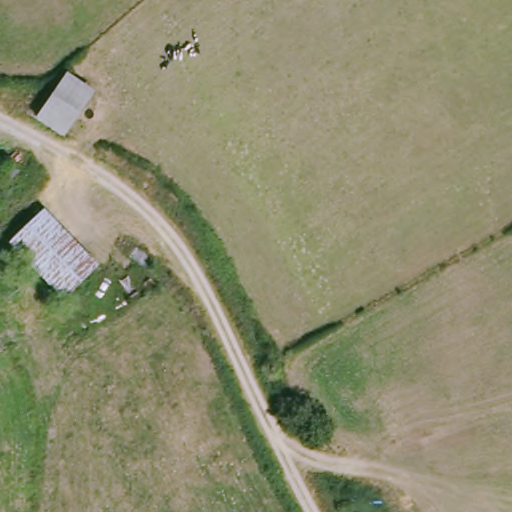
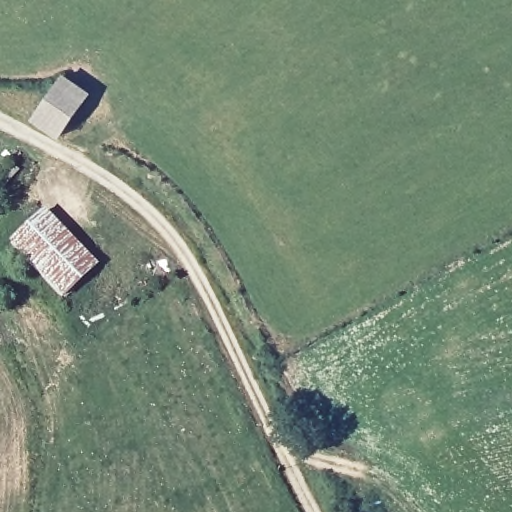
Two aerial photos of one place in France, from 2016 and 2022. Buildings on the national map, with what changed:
unchanged [(68,74),(96,93),(65,137),(37,120),(68,74)]
unchanged [(97,263),(63,298),(12,248),(45,213),(97,263)]

